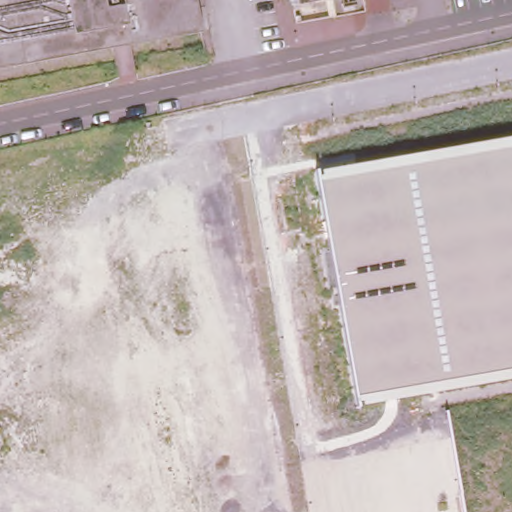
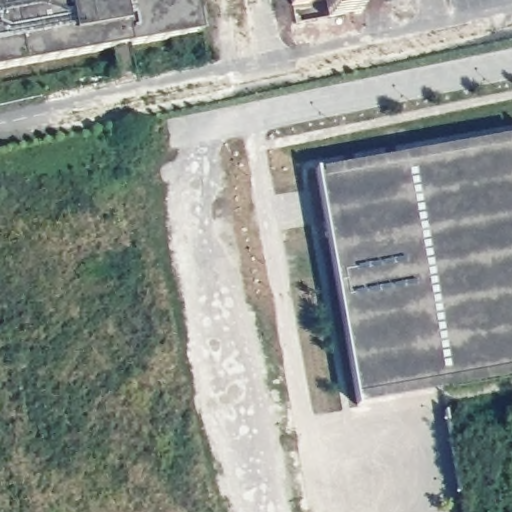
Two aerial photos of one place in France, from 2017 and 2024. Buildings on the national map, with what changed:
unchanged [(199,0),(204,32),(0,68),(0,0),(199,0)]
unchanged [(512,136),(512,376),(358,403),(316,170),(512,136)]

